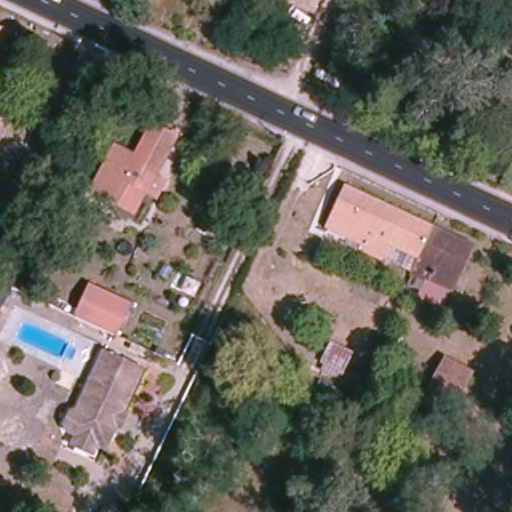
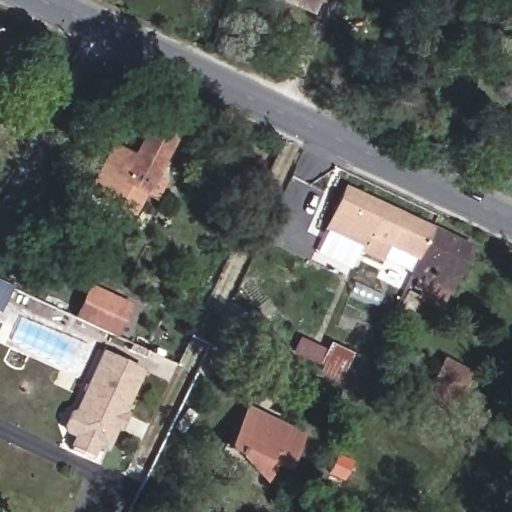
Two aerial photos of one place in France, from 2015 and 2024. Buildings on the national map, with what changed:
unchanged [(286,0),(316,0),(312,10),(286,0)]
unchanged [(1,64),(0,64),(0,27),(14,33),(1,64)]
unchanged [(95,198),(86,192),(112,146),(121,152),(131,159),(150,127),(172,140),(149,178),(160,185),(151,201),(140,195),(128,217),(107,206),(95,198)]
unchanged [(342,226),(360,188),(446,229),(430,260),(401,245),(393,260),(370,249),(338,235),(342,226)]
unchanged [(483,247),(462,291),(424,273),(430,260),(446,229),(483,247)]
new [(0,311),(0,279),(13,286),(0,311)]
unchanged [(90,285),(128,303),(114,333),(76,315),(90,285)]
unchanged [(331,342),(348,352),(337,378),(319,368),(331,342)]
unchanged [(72,445),(77,432),(62,425),(70,405),(75,407),(102,350),(144,368),(106,446),(97,442),(90,453),(72,445)]
unchanged [(427,395),(446,361),(467,374),(450,407),(427,395)]
new [(288,470),(275,463),(265,483),(239,455),(240,452),(227,446),(247,405),(305,432),(288,470)]

